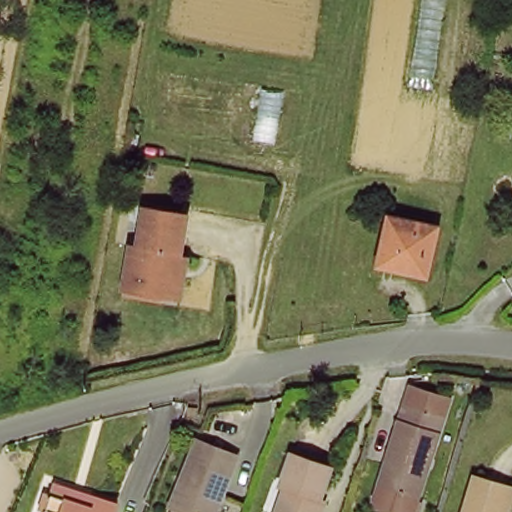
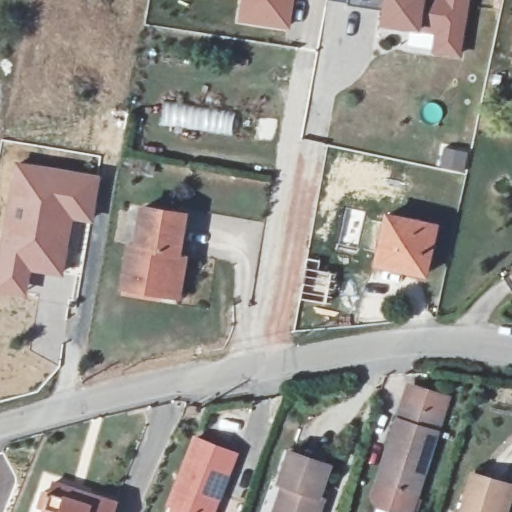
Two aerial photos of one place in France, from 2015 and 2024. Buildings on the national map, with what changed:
new [(291,28),(239,20),(243,0),(296,0),(291,28)]
new [(461,59),(431,54),(435,36),(421,32),(380,26),(383,8),(350,5),(350,0),(471,0),(461,59)]
new [(97,176),(91,220),(73,216),(63,273),(32,268),(28,293),(0,288),(0,264),(18,165),(97,176)]
unchanged [(181,296),(167,294),(119,285),(125,244),(134,246),(141,202),(184,209),(175,258),(187,259),(181,296)]
unchanged [(437,225),(427,276),(375,266),(385,217),(437,225)]
unchanged [(417,401),(423,384),(455,395),(418,512),(408,512),(384,504),(380,496),(385,480),(395,449),(410,399),(417,401)]
unchanged [(169,504),(196,435),(237,450),(214,512),(170,512),(173,505),(169,504)]
unchanged [(324,482),(332,485),(323,512),(276,512),(286,481),(280,479),(290,446),(330,462),(324,482)]
unchanged [(507,495),(502,512),(464,512),(471,485),(507,495)]
unchanged [(110,512),(51,512),(53,506),(45,501),(52,488),(111,509),(110,512)]

